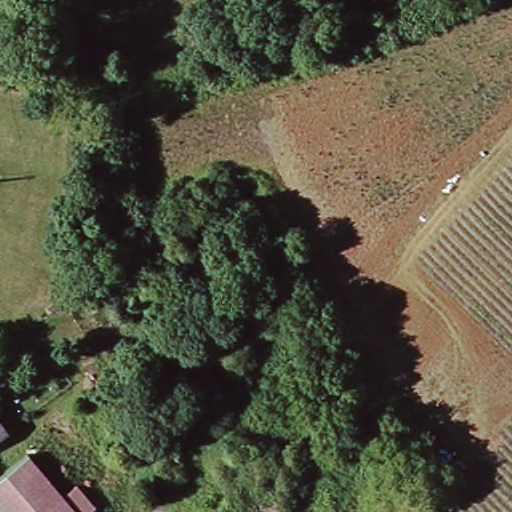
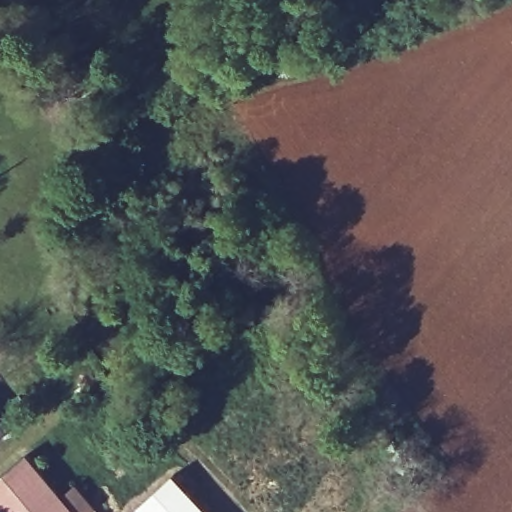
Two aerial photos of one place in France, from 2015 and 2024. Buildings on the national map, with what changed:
unchanged [(0,438),(0,420),(8,432),(0,438)]
unchanged [(0,496),(0,477),(34,449),(82,508),(78,512),(13,512),(0,496)]
new [(212,512),(144,512),(139,506),(176,473),(212,512)]

